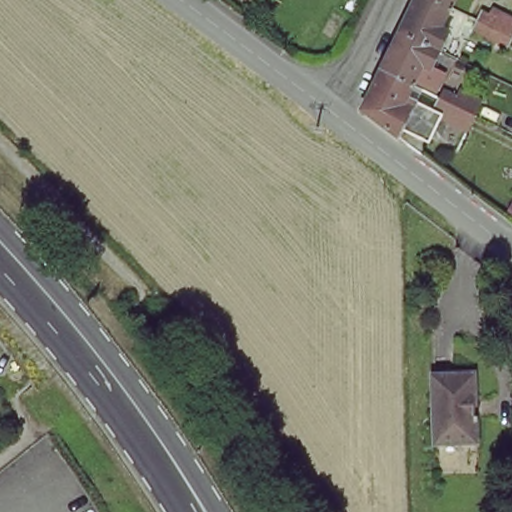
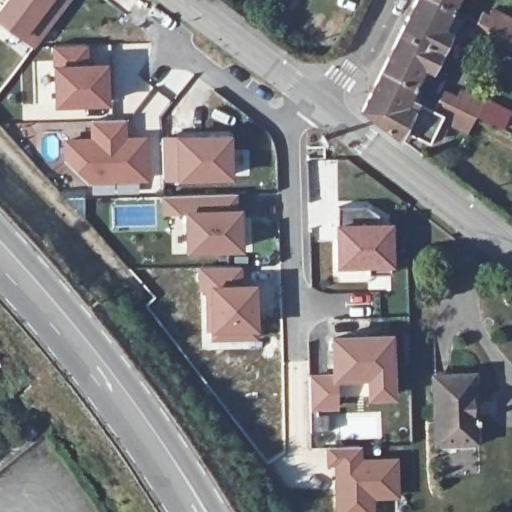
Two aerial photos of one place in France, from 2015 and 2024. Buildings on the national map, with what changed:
new [(11,0),(75,0),(37,49),(0,20),(0,14),(11,0)]
unchanged [(448,7),(439,26),(448,31),(439,50),(398,30),(412,0),(433,0),(448,7)]
unchanged [(448,7),(433,0),(452,0),(448,7)]
unchanged [(474,25),(480,11),(512,26),(512,40),(511,43),(507,51),(470,34),(474,25)]
unchanged [(439,50),(430,67),(434,69),(425,84),(414,79),(412,83),(388,71),(380,67),(398,30),(439,50)]
new [(91,46),(91,64),(113,64),(115,109),(57,110),(54,46),(91,46)]
unchanged [(473,113),(466,128),(440,115),(437,120),(442,121),(446,127),(441,135),(437,137),(431,134),(428,139),(401,126),(397,135),(390,129),(361,107),(364,100),(380,67),(388,71),(412,83),(404,98),(430,110),(437,95),(441,87),(462,97),(478,105),(473,113)]
new [(92,140),(93,121),(130,121),(130,138),(150,137),(151,183),(91,184),(65,161),(65,139),(92,140)]
new [(238,136),(239,182),(166,183),(165,136),(238,136)]
new [(242,196),(242,210),(248,210),(250,254),(190,255),(190,219),(164,219),(164,197),(242,196)]
new [(395,229),(397,274),(338,275),(337,229),(395,229)]
new [(238,265),(235,283),(252,284),(253,326),(235,326),(235,337),(212,338),(212,330),(206,330),(208,289),(200,290),(200,267),(238,265)]
new [(330,370),(328,335),(394,331),(395,397),(365,397),(365,380),(338,382),(338,410),(309,410),(308,372),(330,370)]
unchanged [(434,442),(431,373),(471,372),(471,393),(467,394),(467,416),(472,416),(473,440),(434,442)]
new [(366,460),(401,460),(402,501),(378,501),(379,512),(338,512),(338,468),(330,468),(330,448),(366,448),(366,460)]

